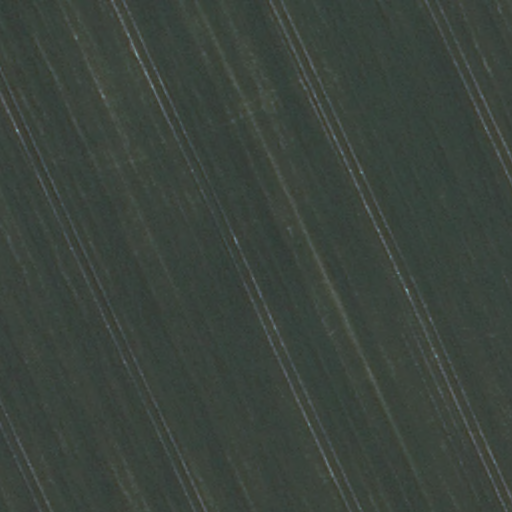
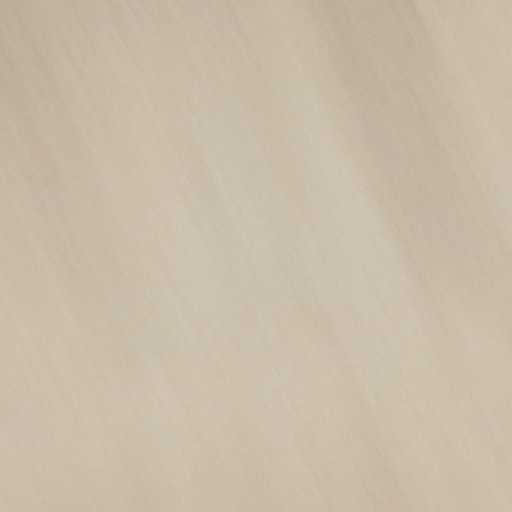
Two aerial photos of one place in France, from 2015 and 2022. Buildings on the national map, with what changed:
[]

